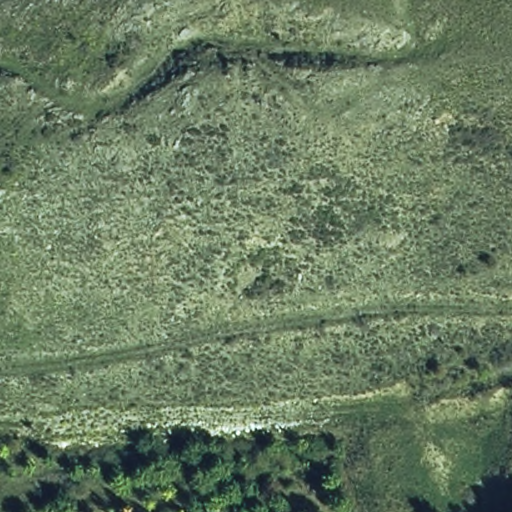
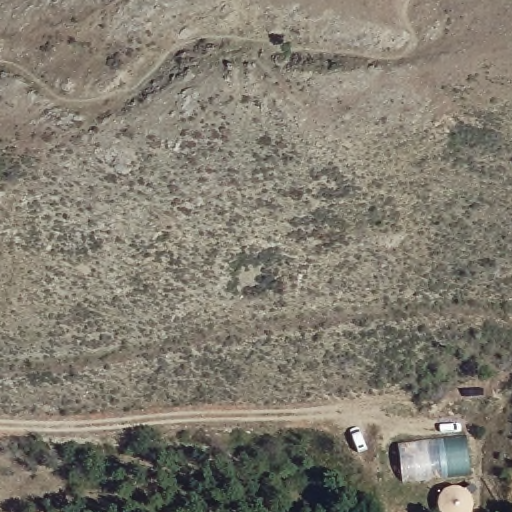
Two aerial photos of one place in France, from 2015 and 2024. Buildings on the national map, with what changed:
new [(466,432),(472,474),(401,485),(396,443),(466,432)]

